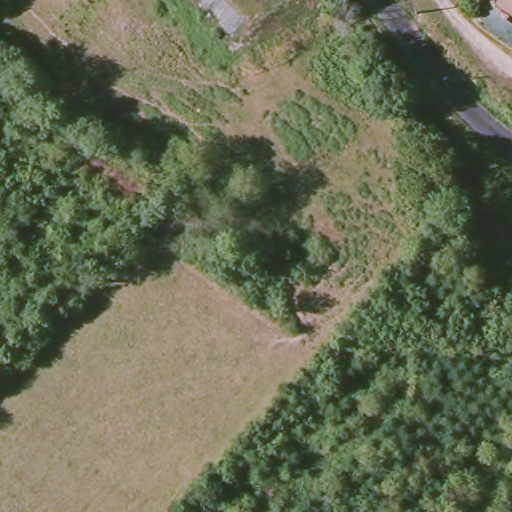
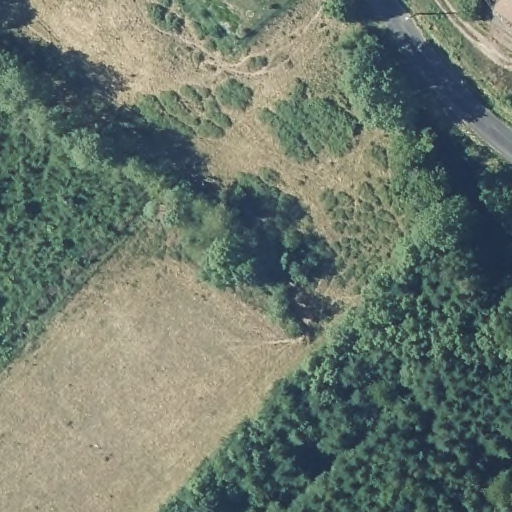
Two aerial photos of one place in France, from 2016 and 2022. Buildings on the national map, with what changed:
unchanged [(509,0),(512,0),(512,7),(507,3),(509,0)]

